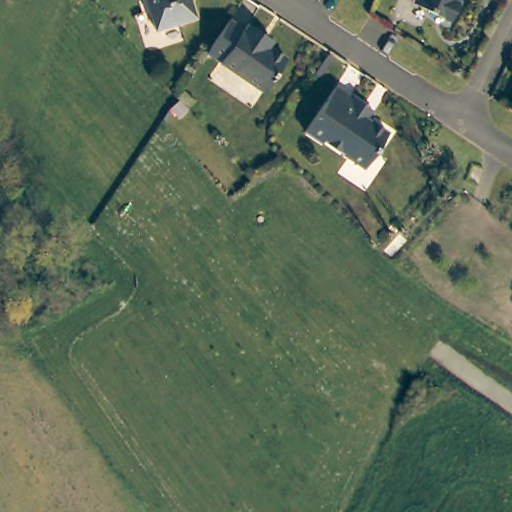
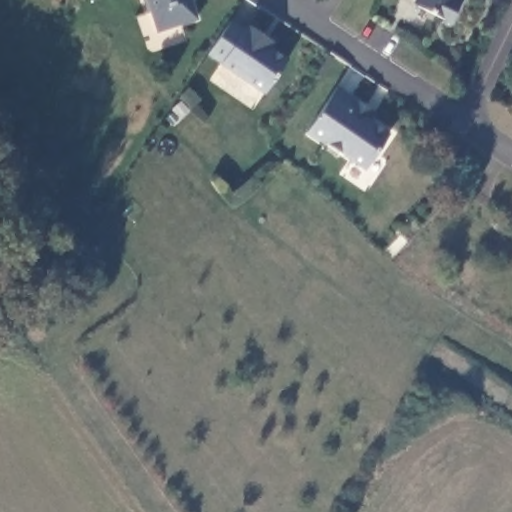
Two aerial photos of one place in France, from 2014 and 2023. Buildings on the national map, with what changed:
unchanged [(195,16),(157,26),(151,10),(149,10),(145,0),(190,0),(195,16)]
unchanged [(440,26),(403,7),(407,0),(453,0),(440,26)]
unchanged [(225,20),(238,30),(243,23),(266,40),(263,47),(282,60),(260,93),(203,51),(225,20)]
unchanged [(361,168),(321,140),(318,145),(300,132),(330,89),(356,107),(367,114),(362,120),(385,136),(361,168)]

